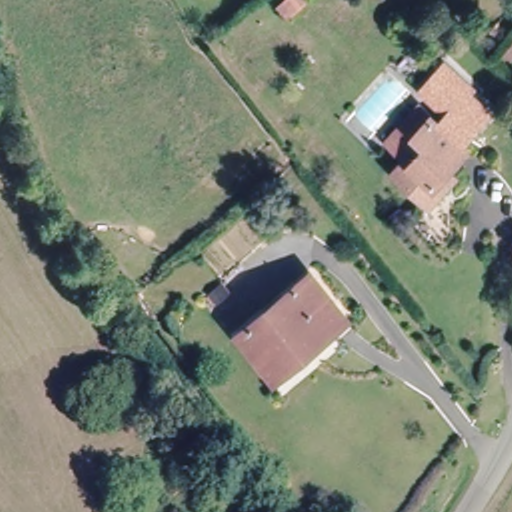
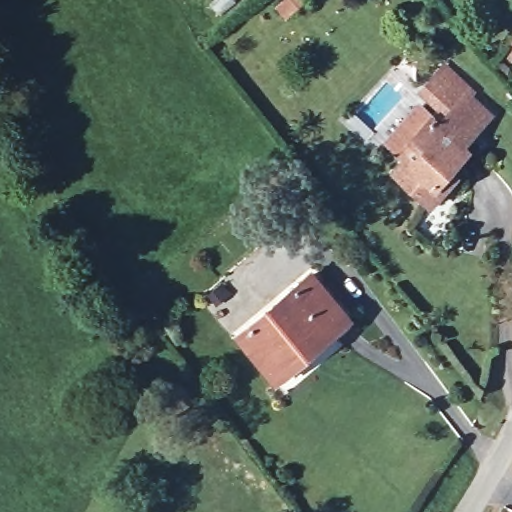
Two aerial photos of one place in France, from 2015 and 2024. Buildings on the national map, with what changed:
unchanged [(286,19),(275,6),(281,0),(307,0),(286,19)]
unchanged [(512,44),(512,52),(508,48),(512,44)]
unchanged [(441,118),(444,114),(418,92),(444,62),(477,90),(474,94),(495,111),(470,144),(441,118)]
unchanged [(441,187),(430,200),(393,166),(405,153),(398,147),(387,136),(422,99),(432,110),(470,144),(452,162),(458,169),(441,187)]
unchanged [(330,328),(334,332),(315,347),(312,343),(273,374),(240,332),(312,272),(347,314),(330,328)]

